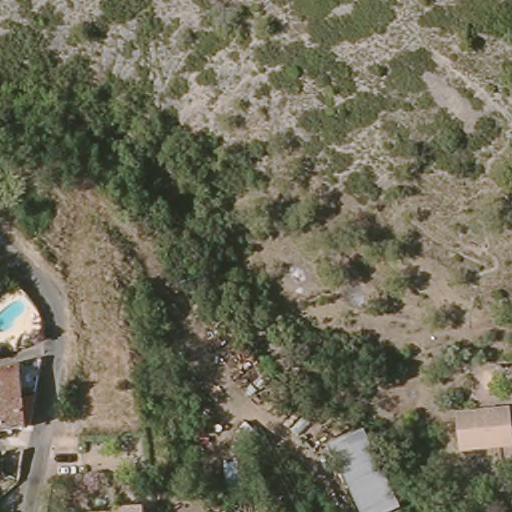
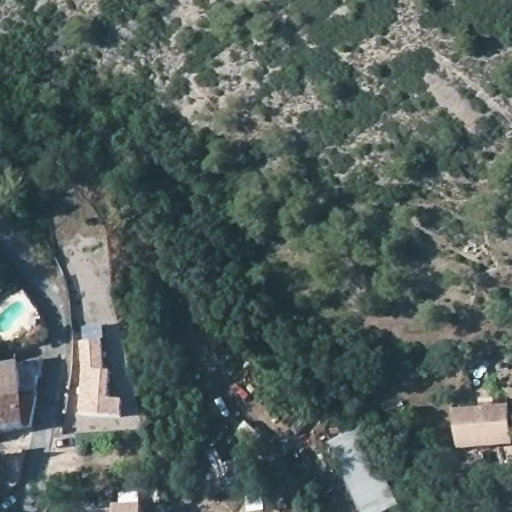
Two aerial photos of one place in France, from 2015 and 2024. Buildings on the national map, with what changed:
new [(104,340),(107,371),(113,372),(111,400),(125,401),(125,420),(81,417),(84,370),(82,343),(104,340)]
unchanged [(36,358),(32,378),(13,381),(14,397),(28,394),(22,426),(0,429),(0,364),(36,358)]
unchanged [(495,398),(499,417),(504,416),(510,451),(462,460),(453,405),(495,398)]
unchanged [(364,425),(407,509),(400,512),(361,512),(328,444),(364,425)]
unchanged [(23,467),(1,470),(4,451),(28,446),(23,467)]
unchanged [(85,512),(116,509),(116,504),(144,501),(146,512),(85,512)]

